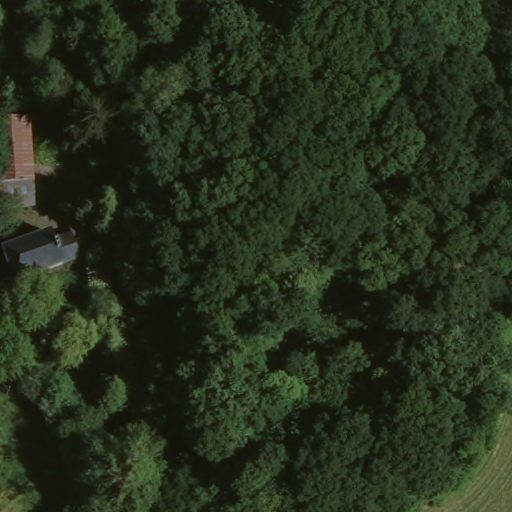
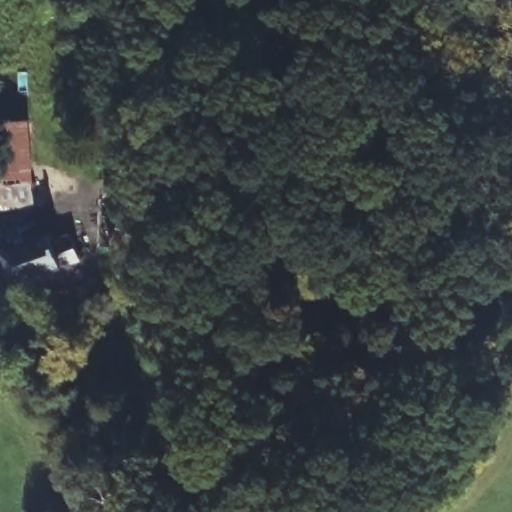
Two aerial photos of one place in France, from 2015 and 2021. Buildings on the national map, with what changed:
unchanged [(32,159),(0,160),(0,104),(30,102),(32,159)]
unchanged [(32,159),(34,188),(0,190),(0,160),(32,159)]
unchanged [(9,248),(58,231),(61,239),(78,232),(90,227),(99,253),(87,257),(20,282),(9,248)]

